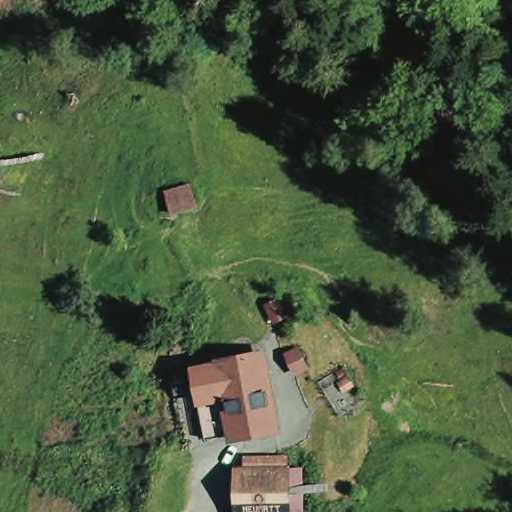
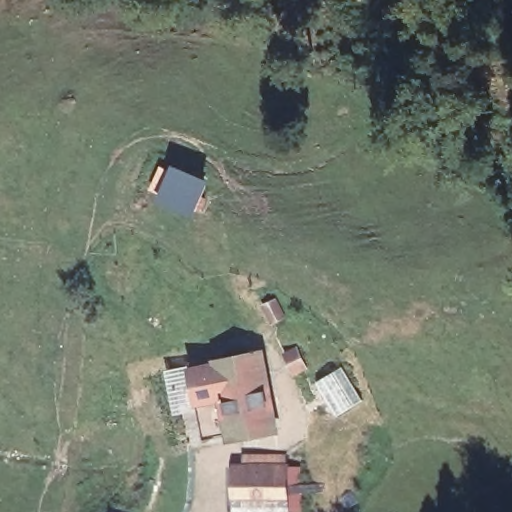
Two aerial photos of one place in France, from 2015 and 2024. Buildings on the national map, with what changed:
new [(151,189),(162,164),(173,169),(175,165),(210,180),(194,215),(160,199),(162,194),(151,189)]
unchanged [(231,439),(216,370),(256,362),(270,431),(231,439)]
unchanged [(231,439),(204,444),(189,375),(216,370),(231,439)]
unchanged [(239,470),(240,458),(284,457),(284,469),(301,469),(301,512),(228,512),(229,470),(239,470)]

